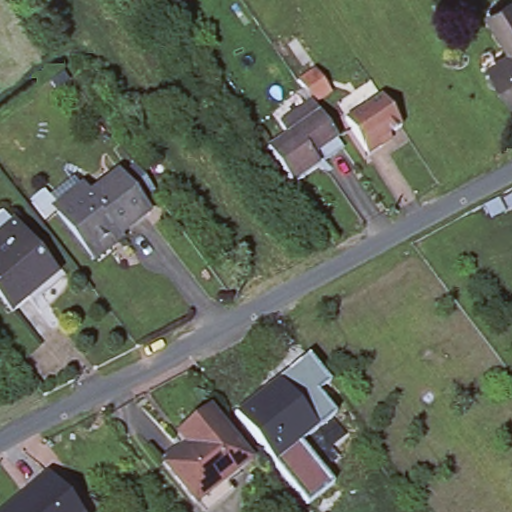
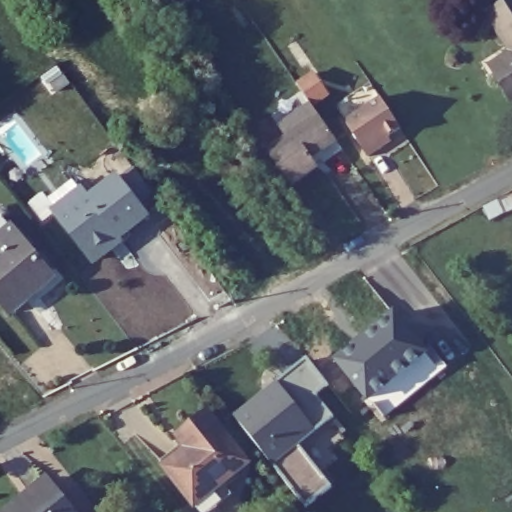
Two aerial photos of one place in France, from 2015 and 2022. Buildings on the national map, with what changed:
unchanged [(176,11),(168,0),(190,0),(176,11)]
unchanged [(503,0),(512,0),(512,42),(490,9),(503,0)]
unchanged [(500,67),(494,59),(512,46),(512,85),(500,67)]
unchanged [(289,192),(265,157),(284,145),(277,134),(298,120),(291,108),(303,99),(297,91),(313,80),(328,101),(312,112),(318,122),(335,147),(342,157),(317,173),(289,192)]
unchanged [(378,97),(399,130),(380,142),(384,148),(368,159),(343,121),(378,97)]
unchanged [(97,254),(94,257),(62,212),(57,205),(83,185),(89,192),(116,172),(147,214),(119,234),(121,236),(97,254)]
unchanged [(0,236),(0,227),(9,220),(15,227),(56,279),(14,313),(0,296),(0,239),(2,238),(0,236)]
new [(413,336),(425,326),(432,334),(420,344),(432,360),(439,354),(448,366),(385,416),(339,360),(395,315),(413,336)]
unchanged [(304,352),(306,356),(326,380),(313,390),(331,412),(328,415),(296,440),(318,468),(329,482),(302,503),(230,411),(245,399),(304,352)]
unchanged [(185,446),(177,435),(205,411),(245,461),(210,489),(179,450),(185,446)]
new [(328,415),(342,433),(328,445),(336,455),(318,468),(296,440),(328,415)]
unchanged [(179,450),(210,489),(192,502),(162,464),(179,450)]
unchanged [(50,483),(73,512),(9,512),(11,511),(34,492),(37,490),(46,483),(50,483)]

